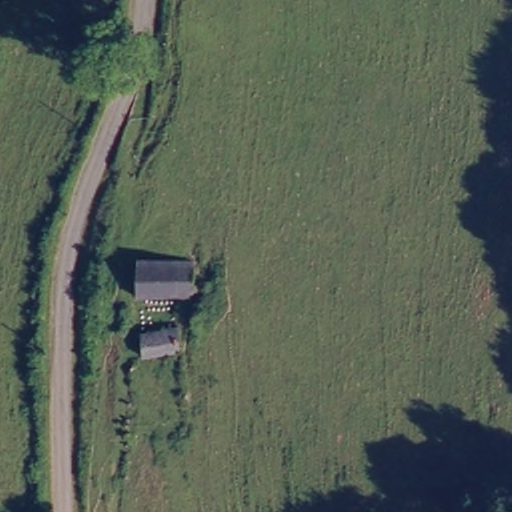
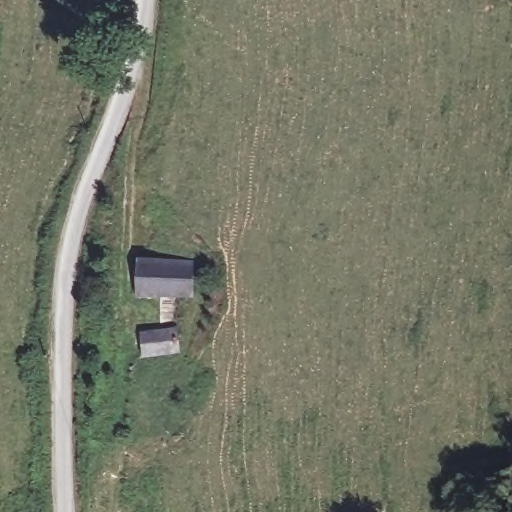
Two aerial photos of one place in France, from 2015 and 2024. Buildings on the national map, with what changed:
unchanged [(131,270),(187,267),(189,300),(132,302),(131,270)]
unchanged [(144,361),(143,339),(180,334),(181,357),(144,361)]

